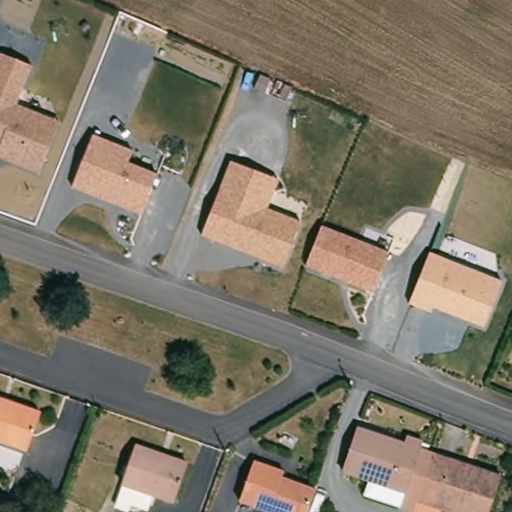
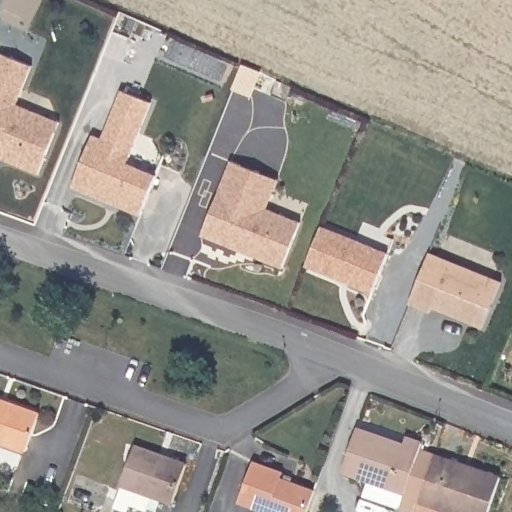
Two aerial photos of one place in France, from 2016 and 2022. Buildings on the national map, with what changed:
unchanged [(16,106),(59,121),(39,175),(0,160),(0,54),(31,66),(16,106)]
new [(101,136),(121,90),(151,101),(133,149),(101,136)]
unchanged [(133,149),(128,162),(156,174),(140,215),(70,186),(92,133),(133,149)]
unchanged [(278,180),(268,209),(300,221),(281,268),(200,235),(229,161),(278,180)]
unchanged [(387,250),(372,294),(303,267),(320,222),(387,250)]
unchanged [(484,327),(433,308),(431,312),(409,304),(430,253),(504,281),(484,327)]
unchanged [(30,451),(0,440),(0,401),(42,417),(30,451)]
unchanged [(419,511),(369,495),(375,480),(346,471),(361,426),(404,443),(407,435),(424,441),(423,445),(439,451),(419,511)]
unchanged [(141,445),(188,461),(176,495),(129,478),(141,445)]
unchanged [(500,476),(486,512),(452,512),(442,508),(440,512),(418,512),(419,511),(439,451),(500,476)]
unchanged [(257,463),(286,474),(284,480),(316,491),(308,512),(275,512),(244,500),(257,463)]

